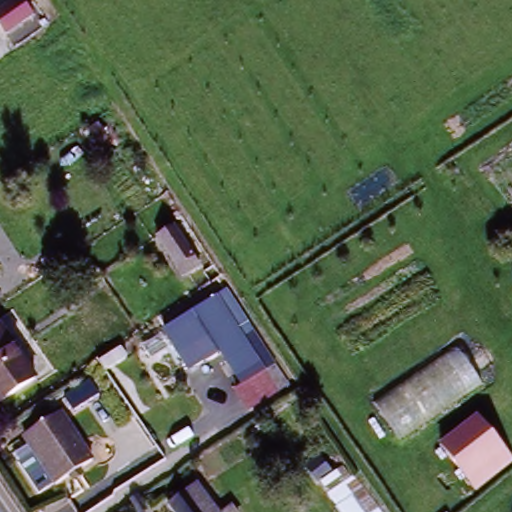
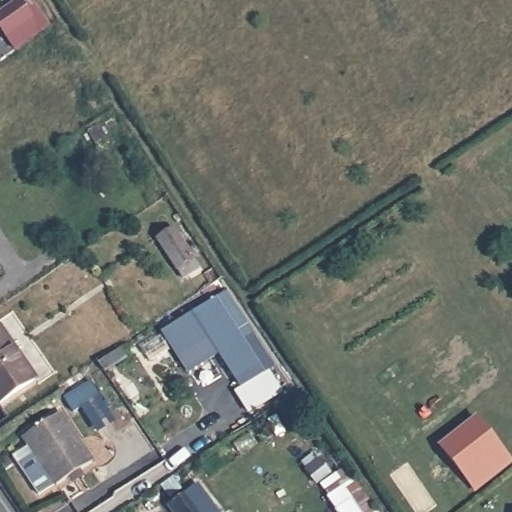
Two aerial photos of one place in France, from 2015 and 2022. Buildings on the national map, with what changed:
unchanged [(191,269),(184,274),(162,249),(172,240),(179,235),(200,263),(191,269)]
unchanged [(180,359),(162,335),(212,296),(222,289),(240,313),(293,380),(274,393),(252,407),(239,387),(246,382),(223,349),(205,362),(191,373),(180,359)]
unchanged [(35,379),(2,404),(0,401),(0,333),(35,379)]
demolished [(456,349),(482,384),(400,444),(375,407),(456,349)]
unchanged [(62,416),(95,461),(61,485),(28,441),(62,416)]
unchanged [(477,418),(504,452),(467,481),(440,448),(477,418)]
unchanged [(207,438),(214,446),(184,465),(175,455),(207,438)]
unchanged [(347,479),(357,479),(380,512),(337,512),(320,486),(307,470),(319,460),(333,476),(341,471),(347,479)]
unchanged [(187,489),(200,479),(218,501),(226,512),(169,512),(165,506),(187,489)]

